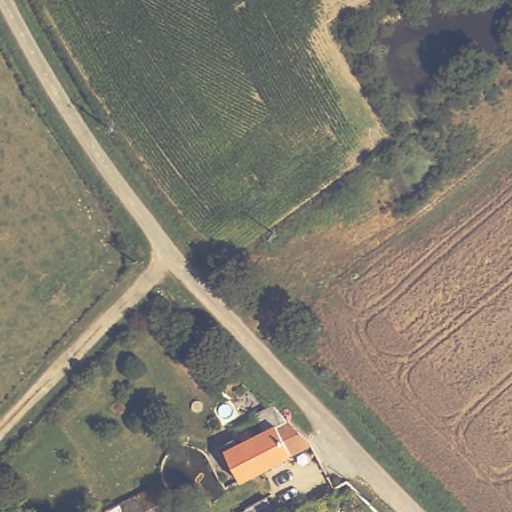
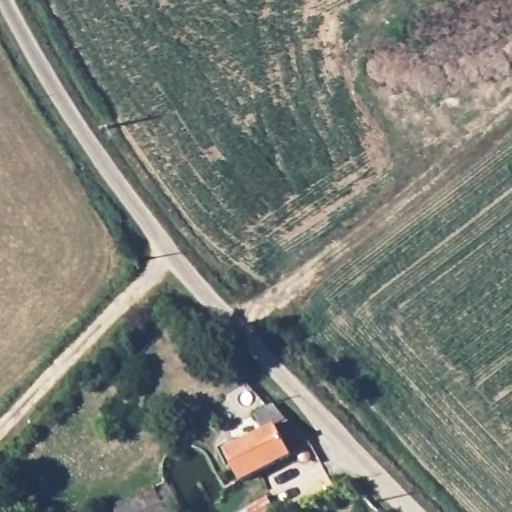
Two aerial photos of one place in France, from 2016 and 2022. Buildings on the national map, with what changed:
unchanged [(242,476),(227,444),(286,412),(312,440),(242,476)]
unchanged [(175,510),(171,512),(95,512),(158,478),(175,510)]

